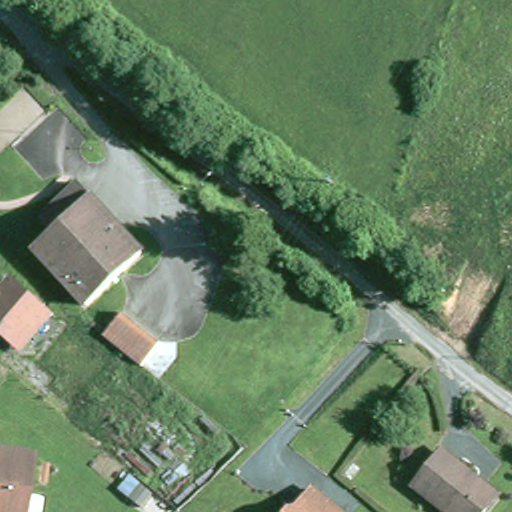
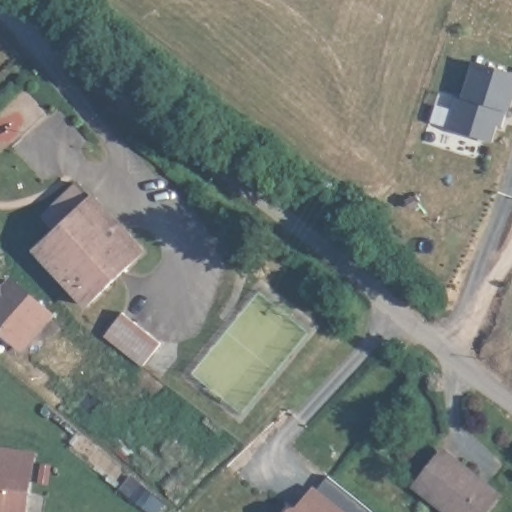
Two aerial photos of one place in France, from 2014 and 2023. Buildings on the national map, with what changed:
new [(492,141),(447,126),(457,93),(462,94),(473,61),(512,72),(512,102),(510,111),(507,111),(502,125),(497,124),(492,141)]
unchanged [(58,273),(46,264),(47,262),(34,249),(49,234),(47,232),(51,226),(42,216),(74,184),(77,188),(137,249),(92,298),(87,303),(58,273)]
unchanged [(12,348),(0,338),(0,287),(4,282),(36,309),(38,307),(42,310),(12,348)]
unchanged [(104,334),(113,320),(119,311),(159,339),(142,365),(127,352),(104,334)]
unchanged [(494,494),(480,512),(452,512),(415,482),(439,452),(440,449),(494,494)]
unchanged [(22,512),(0,512),(0,451),(30,455),(22,512)]
unchanged [(337,512),(295,512),(312,493),(337,512)]

